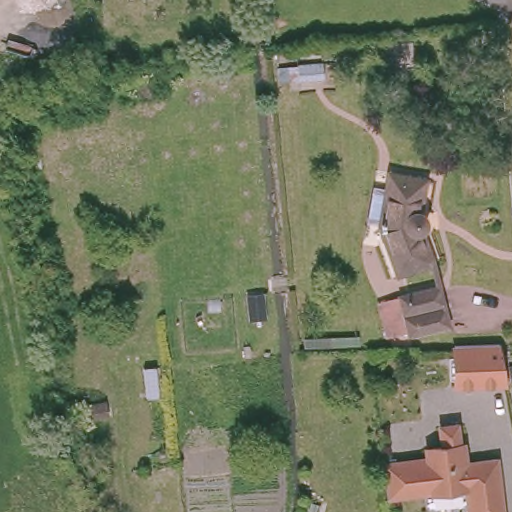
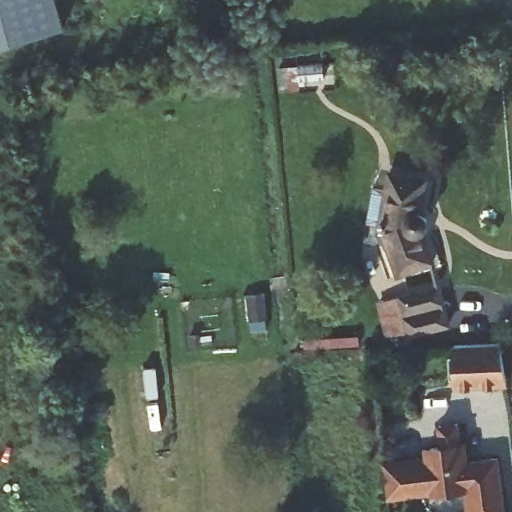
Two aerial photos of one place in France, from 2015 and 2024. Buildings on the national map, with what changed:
new [(64,26),(0,44),(0,0),(58,0),(64,26)]
unchanged [(425,266),(389,277),(376,228),(384,176),(420,182),(414,216),(421,216),(425,220),(428,225),(426,230),(422,234),(417,236),(425,266)]
unchanged [(381,301),(401,296),(438,287),(440,299),(447,326),(409,334),(409,330),(389,335),(381,301)]
unchanged [(503,348),(509,390),(457,392),(454,350),(503,348)]
unchanged [(438,494),(387,502),(386,495),(381,466),(426,460),(425,457),(431,450),(441,449),(439,434),(438,427),(456,424),(457,431),(459,445),(464,444),(467,463),(498,458),(506,508),(506,512),(471,512),(468,490),(438,494)]

